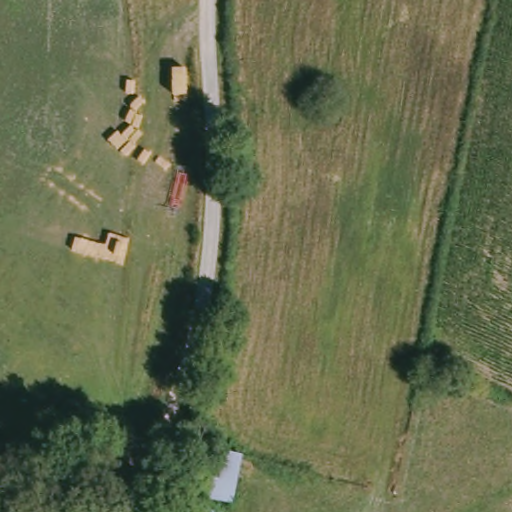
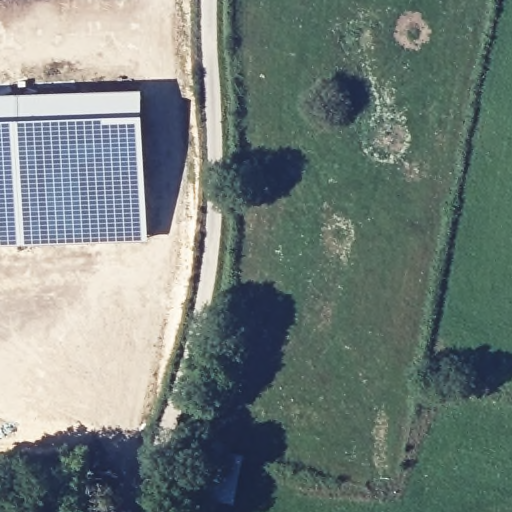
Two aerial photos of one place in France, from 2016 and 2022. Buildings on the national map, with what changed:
new [(145,241),(0,250),(0,100),(135,91),(145,241)]
unchanged [(250,454),(238,502),(207,497),(216,449),(250,454)]

